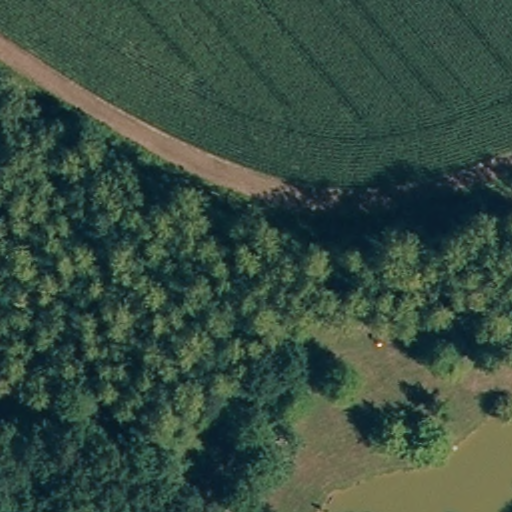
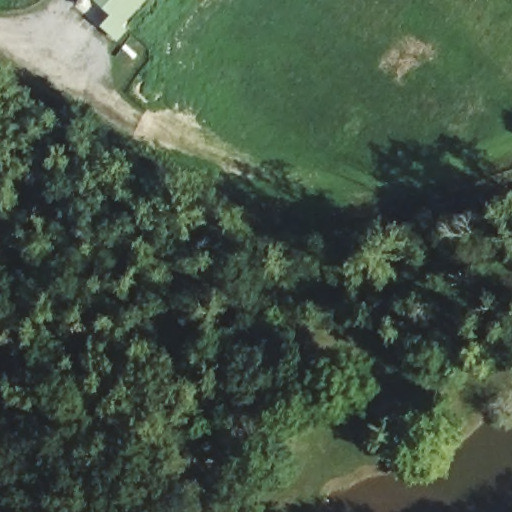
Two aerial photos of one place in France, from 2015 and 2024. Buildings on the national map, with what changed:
new [(130,30),(120,41),(102,26),(113,16),(93,0),(149,0),(125,26),(130,30)]

